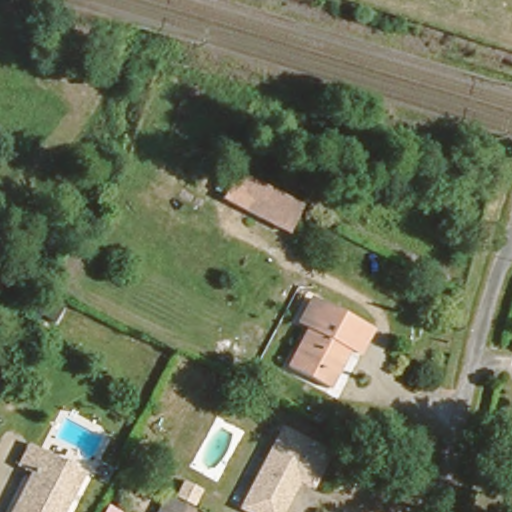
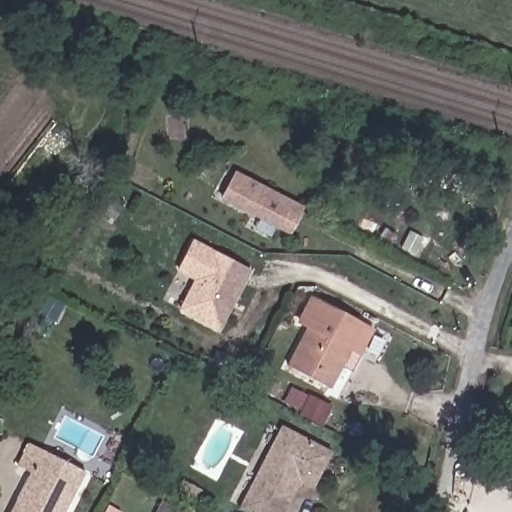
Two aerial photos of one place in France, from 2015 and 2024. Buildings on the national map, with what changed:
unchanged [(282,226),(231,200),(246,170),(261,178),(297,196),(307,201),(291,231),(282,226)]
new [(219,332),(177,310),(194,280),(177,271),(193,239),(252,270),(219,332)]
unchanged [(285,358),(308,318),(300,313),(313,290),(361,315),(371,321),(359,345),(349,338),(327,380),(285,358)]
unchanged [(279,512),(253,512),(240,505),(282,426),(329,450),(312,483),(298,477),(279,512)]
unchanged [(27,470),(15,463),(28,440),(86,466),(63,512),(34,512),(10,501),(27,470)]
unchanged [(5,512),(10,501),(34,512),(5,512)]

